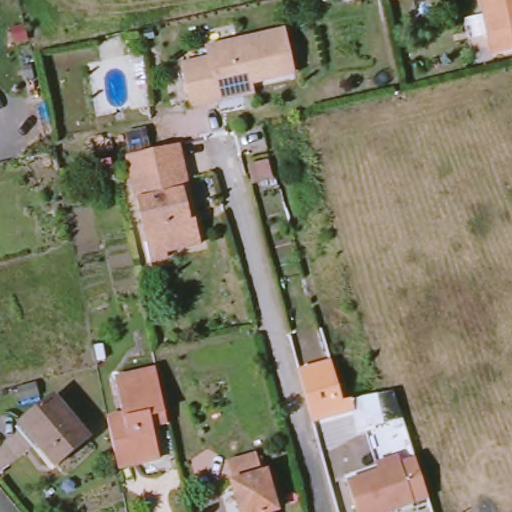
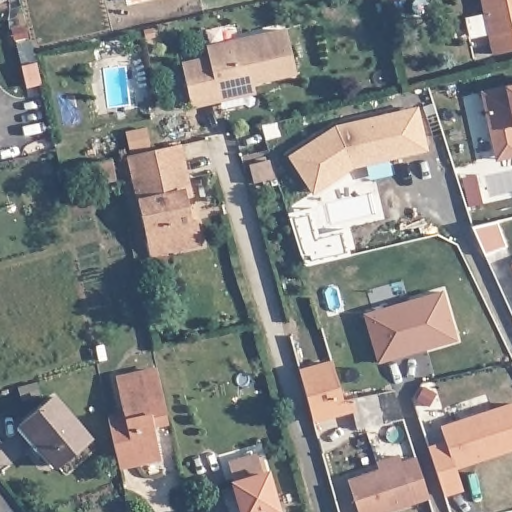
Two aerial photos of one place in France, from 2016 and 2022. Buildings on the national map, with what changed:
unchanged [(494,56),(481,0),(512,0),(512,52),(494,56)]
unchanged [(213,103),(212,100),(185,105),(175,66),(202,60),(201,50),(279,31),(289,75),(246,85),(248,95),(213,103)]
new [(496,161),(481,91),(506,86),(512,85),(512,158),(496,161)]
new [(353,169),(313,195),(288,157),(336,125),(419,107),(427,151),(353,169)]
unchanged [(151,258),(146,240),(127,155),(178,142),(185,171),(188,186),(201,241),(164,250),(165,256),(151,258)]
unchanged [(116,180),(91,185),(86,163),(112,157),(116,180)]
new [(511,265),(512,264),(512,267),(511,265)]
new [(377,362),(363,313),(443,290),(457,340),(377,362)]
unchanged [(333,362),(343,400),(376,393),(385,427),(358,432),(352,413),(313,423),(300,369),(333,362)]
unchanged [(149,426),(156,457),(114,467),(113,462),(106,431),(103,418),(119,414),(111,378),(152,370),(161,412),(164,423),(149,426)]
unchanged [(49,395),(85,437),(52,465),(15,423),(49,395)]
new [(457,468),(463,491),(445,497),(428,446),(445,441),(441,426),(512,403),(512,450),(457,468)]
unchanged [(255,450),(260,468),(266,467),(278,505),(269,508),(270,512),(242,512),(236,489),(226,458),(255,450)]
unchanged [(376,470),(374,462),(395,455),(398,463),(415,457),(428,497),(382,512),(357,512),(346,480),(376,470)]

